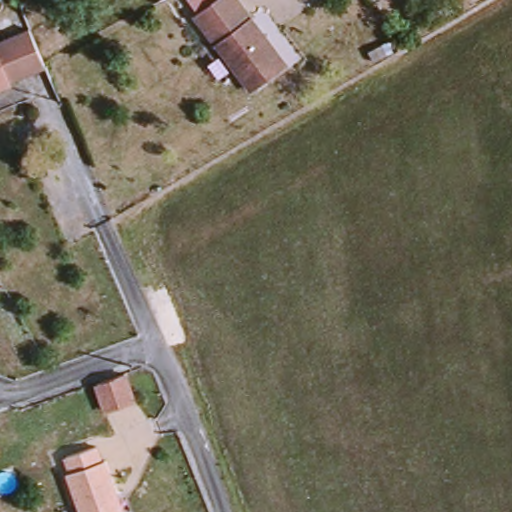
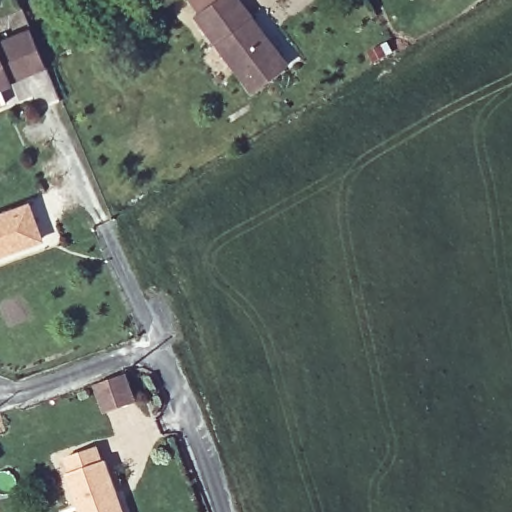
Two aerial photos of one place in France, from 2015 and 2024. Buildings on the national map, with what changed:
unchanged [(255,89),(202,13),(220,0),(251,0),(293,63),(255,89)]
unchanged [(24,78),(0,86),(0,41),(26,32),(44,64),(45,70),(24,78)]
new [(43,240),(0,256),(0,210),(29,200),(43,240)]
unchanged [(77,490),(81,487),(72,457),(102,446),(109,465),(116,461),(127,495),(121,498),(126,512),(84,512),(77,490)]

